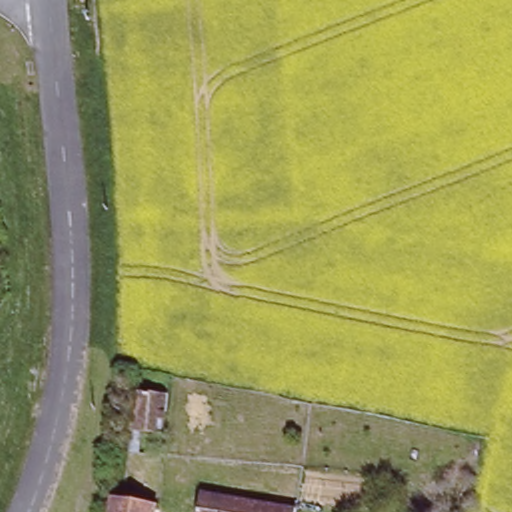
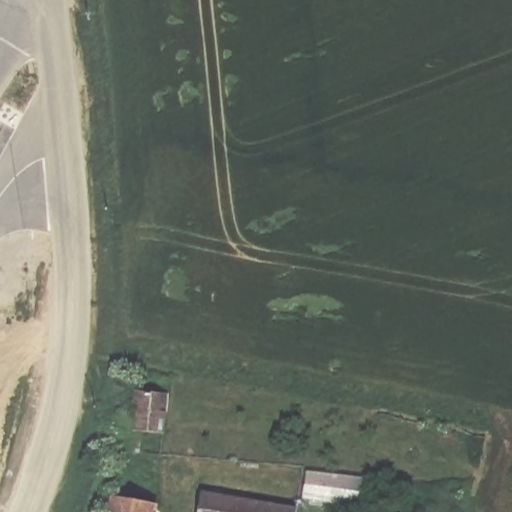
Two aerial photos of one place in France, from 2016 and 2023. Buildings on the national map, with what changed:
unchanged [(166,393),(162,429),(132,426),(135,388),(166,393)]
unchanged [(202,489),(295,507),(293,512),(197,512),(202,489)]
unchanged [(150,503),(149,512),(108,512),(112,496),(150,503)]

